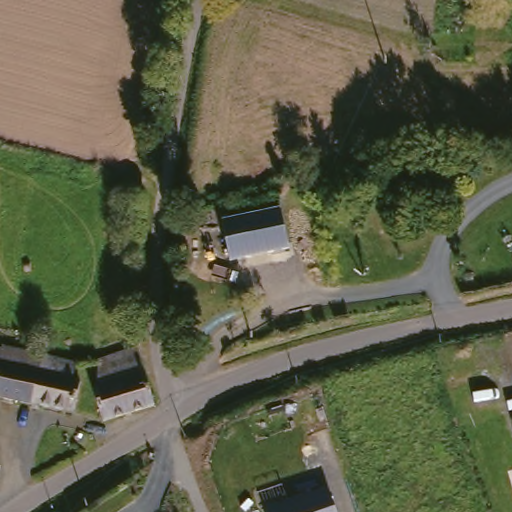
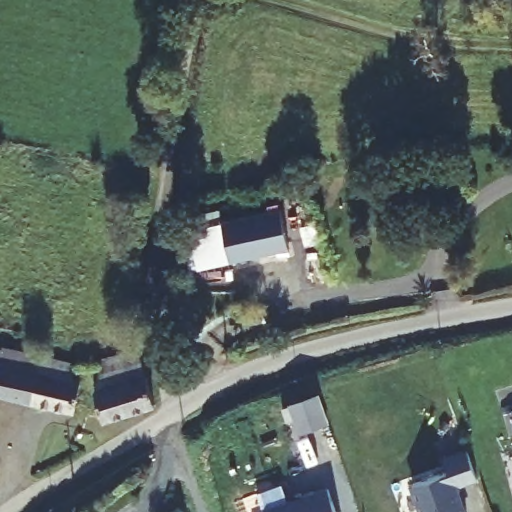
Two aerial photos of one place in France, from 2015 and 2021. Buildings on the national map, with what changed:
unchanged [(221,220),(280,207),(287,247),(230,257),(221,220)]
unchanged [(101,356),(135,347),(145,374),(154,401),(107,417),(98,389),(101,356)]
unchanged [(34,401),(44,368),(48,352),(82,360),(80,374),(87,376),(85,392),(82,410),(34,401)]
unchanged [(0,394),(0,358),(44,368),(34,401),(17,397),(0,394)]
new [(316,397),(326,425),(299,434),(290,407),(316,397)]
new [(410,485),(448,473),(443,457),(465,450),(476,481),(457,487),(466,512),(418,512),(410,485)]
unchanged [(261,511),(327,486),(336,512),(262,512),(261,511)]

